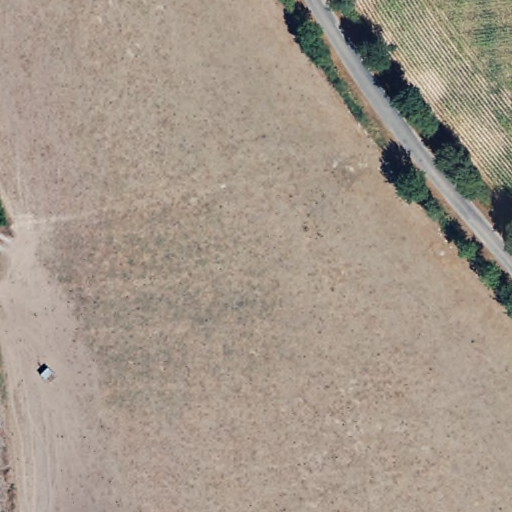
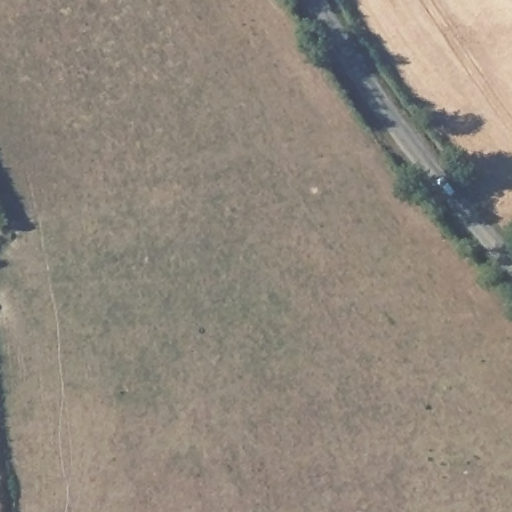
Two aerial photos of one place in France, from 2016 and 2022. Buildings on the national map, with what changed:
[]

